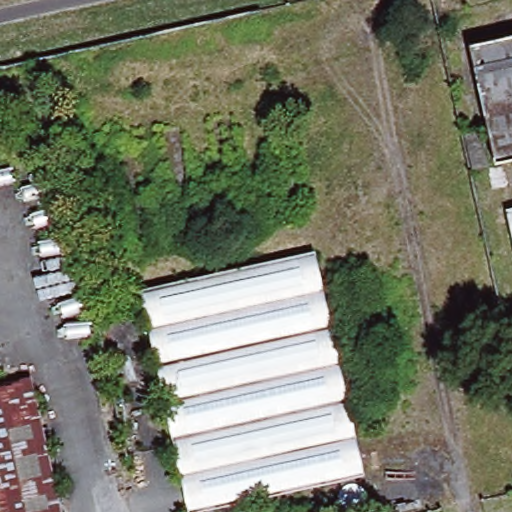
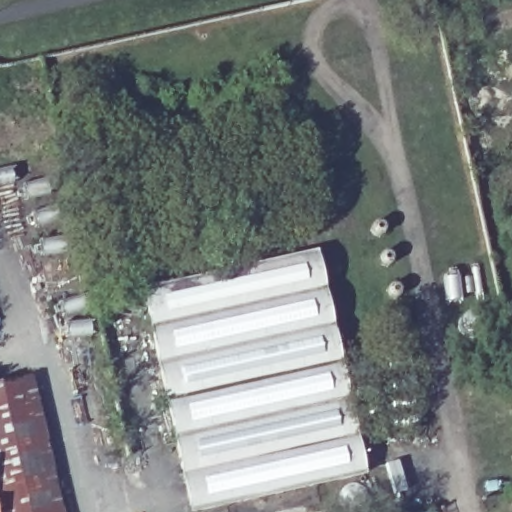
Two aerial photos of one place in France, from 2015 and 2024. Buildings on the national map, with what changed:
demolished [(470,48),(512,38),(512,159),(496,162),(470,48)]
unchanged [(205,512),(187,512),(141,289),(315,251),(365,476),(205,512)]
unchanged [(33,376),(63,512),(0,512),(0,383),(33,376)]

